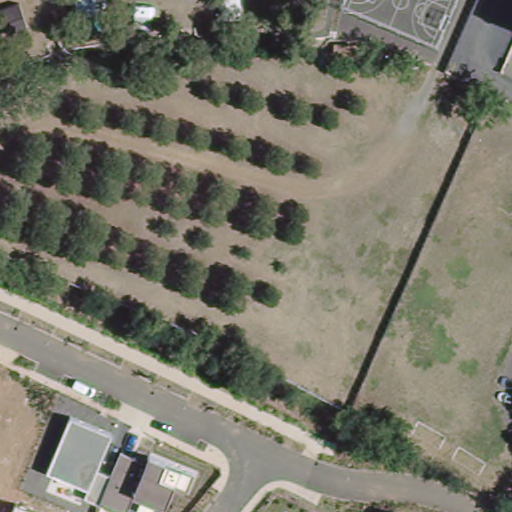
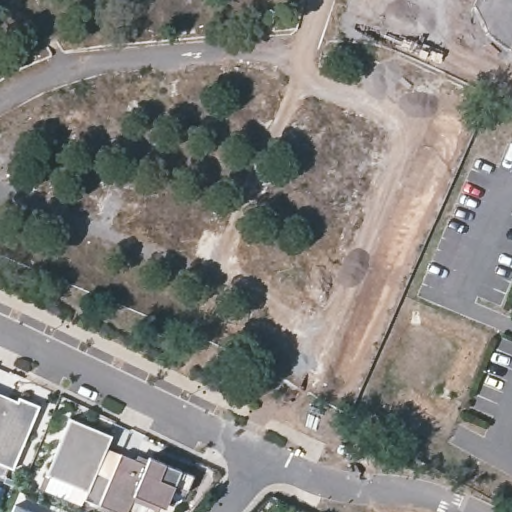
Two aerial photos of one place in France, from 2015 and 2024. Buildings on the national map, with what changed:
new [(19,396),(40,405),(13,468),(0,463),(0,393),(17,401),(19,396)]
unchanged [(111,436),(98,471),(110,476),(121,452),(146,463),(149,455),(166,463),(180,470),(191,475),(186,490),(175,485),(165,508),(135,495),(128,512),(115,512),(85,500),(89,491),(48,473),(71,417),(111,436)]
unchanged [(28,512),(12,512),(15,507),(28,512)]

